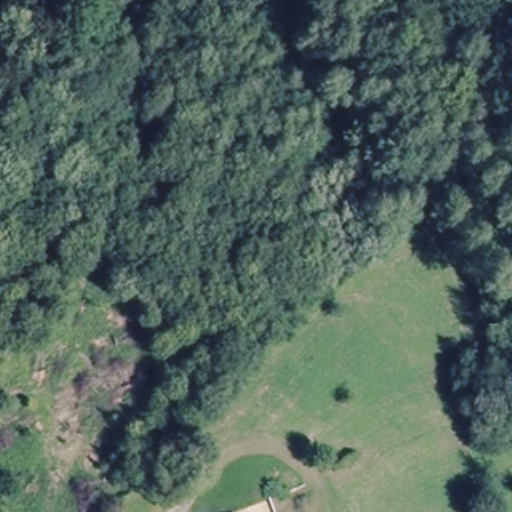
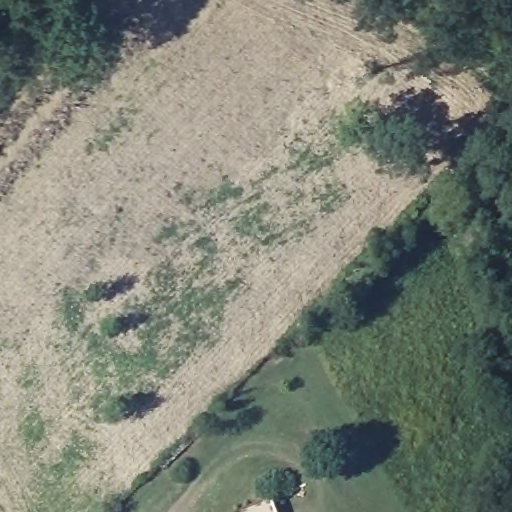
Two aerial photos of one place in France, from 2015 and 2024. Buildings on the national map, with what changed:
unchanged [(275,512),(250,512),(271,503),(275,512)]

